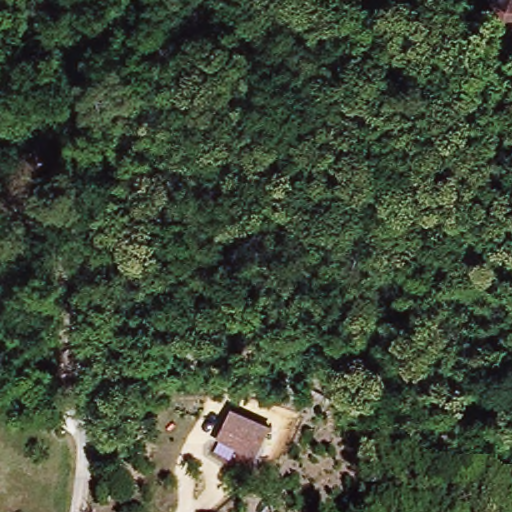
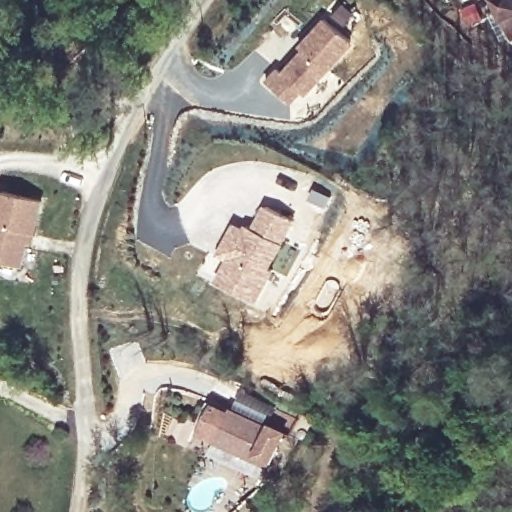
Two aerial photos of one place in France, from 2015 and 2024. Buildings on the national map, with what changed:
unchanged [(497,0),(512,0),(512,38),(511,38),(497,0)]
new [(285,73),(305,49),(302,46),(308,38),(325,19),(352,41),(307,94),(302,90),(293,101),(270,82),(281,69),(285,73)]
new [(2,192),(42,200),(35,234),(30,233),(22,267),(0,262),(0,204),(2,192)]
new [(223,254),(237,227),(246,231),(248,226),(255,229),(266,207),(292,220),(269,267),(273,269),(258,299),(221,282),(232,259),(223,254)]
unchanged [(270,430),(253,464),(214,444),(230,411),(270,430)]

